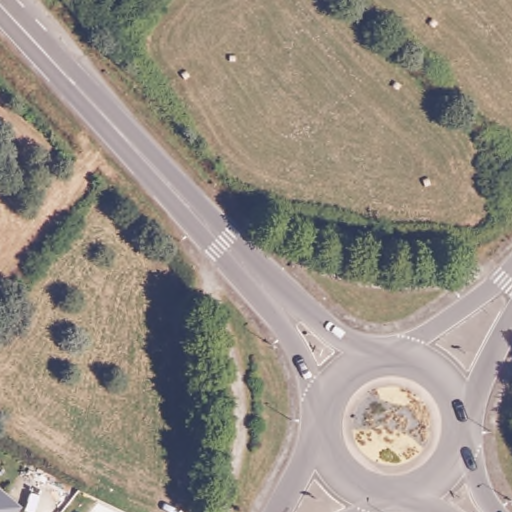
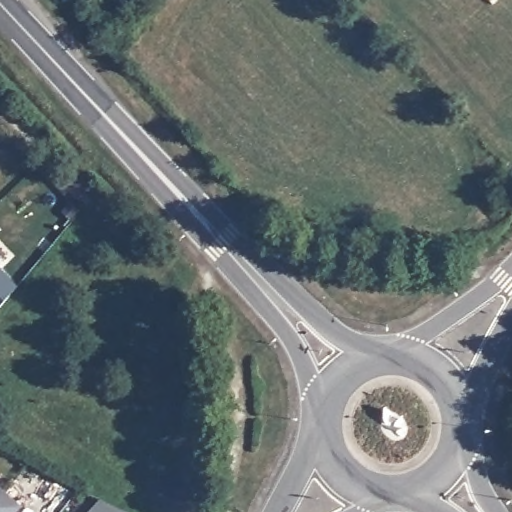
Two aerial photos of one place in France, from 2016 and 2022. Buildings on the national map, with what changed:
new [(17,287),(0,307),(0,269),(17,287)]
unchanged [(24,508),(20,512),(0,512),(0,486),(24,508)]
unchanged [(125,512),(88,512),(100,500),(125,512)]

